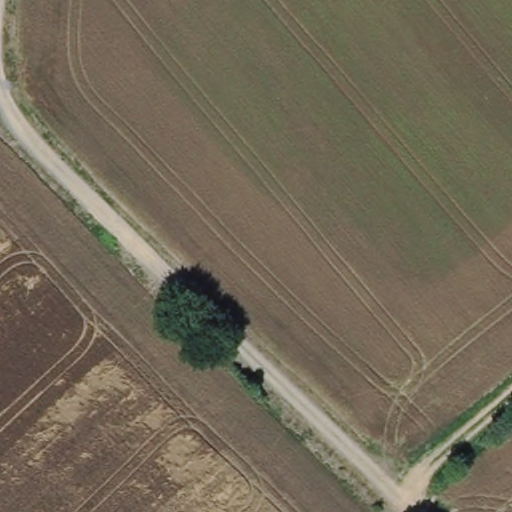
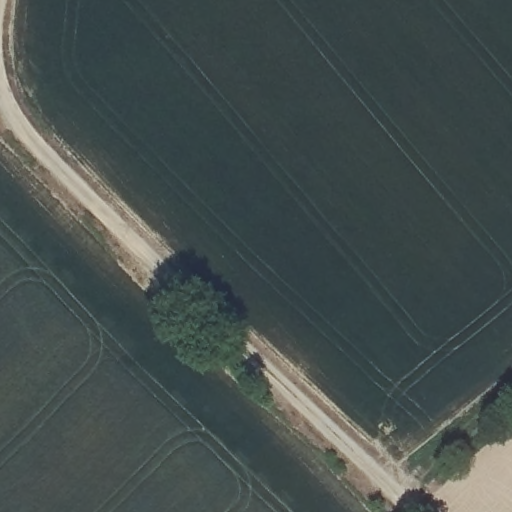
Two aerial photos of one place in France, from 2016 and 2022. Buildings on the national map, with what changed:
[]

